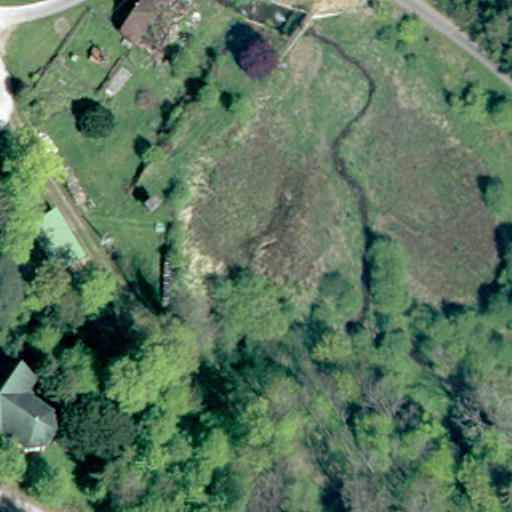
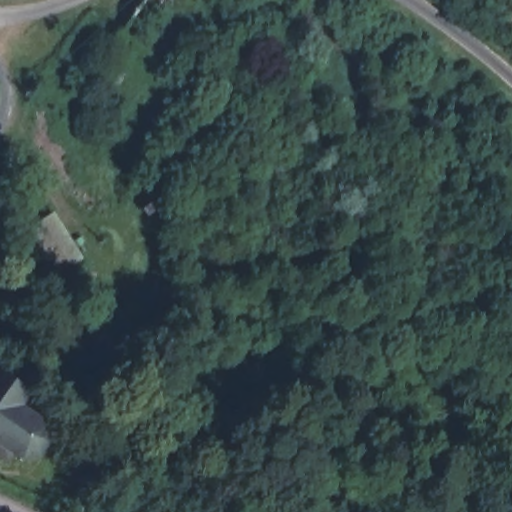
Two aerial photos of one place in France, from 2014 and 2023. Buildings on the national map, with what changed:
unchanged [(8,401),(41,427),(22,452),(15,446),(0,461),(0,371),(19,387),(8,401)]

